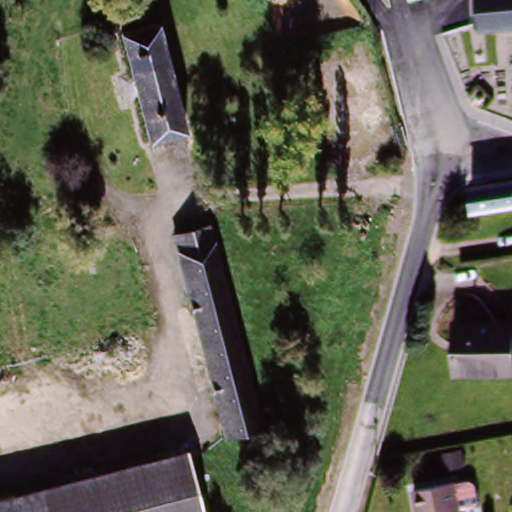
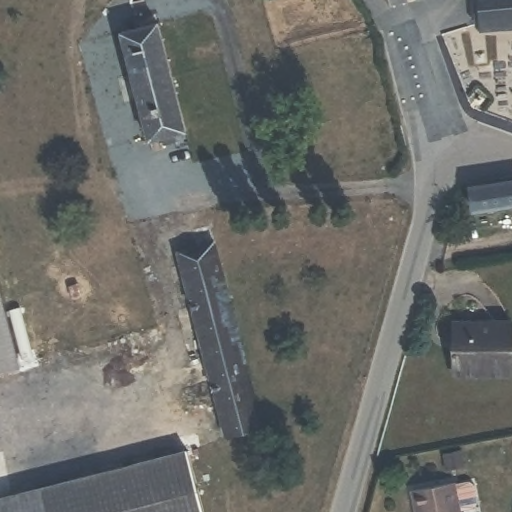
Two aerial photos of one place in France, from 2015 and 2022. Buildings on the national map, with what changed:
unchanged [(512,28),(477,30),(476,20),(473,0),(512,0),(512,28)]
unchanged [(173,134),(175,142),(160,145),(158,138),(145,141),(120,32),(158,23),(183,132),(173,134)]
unchanged [(468,189),(512,181),(512,204),(471,212),(468,189)]
unchanged [(262,421),(226,430),(177,230),(212,222),(262,421)]
new [(22,365),(0,371),(0,282),(22,365)]
unchanged [(512,370),(463,371),(462,323),(512,322),(512,370)]
unchanged [(0,512),(0,499),(181,454),(196,512),(0,512)]
unchanged [(462,457),(465,468),(446,471),(445,460),(462,457)]
unchanged [(450,486),(455,512),(413,512),(410,495),(450,486)]

